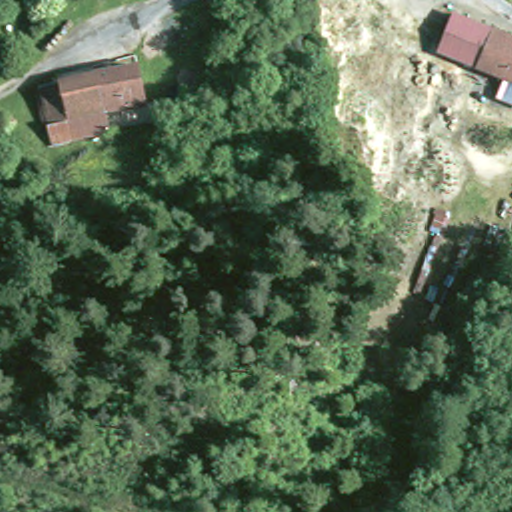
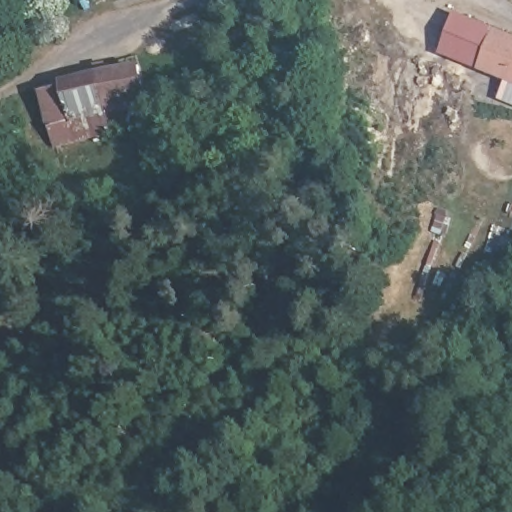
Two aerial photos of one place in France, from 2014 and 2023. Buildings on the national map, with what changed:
unchanged [(498,32),(482,70),(446,52),(457,12),(498,32)]
unchanged [(498,100),(507,81),(482,70),(498,32),(512,39),(512,106),(498,100)]
unchanged [(78,119),(38,131),(28,90),(105,67),(113,91),(118,107),(78,119)]

